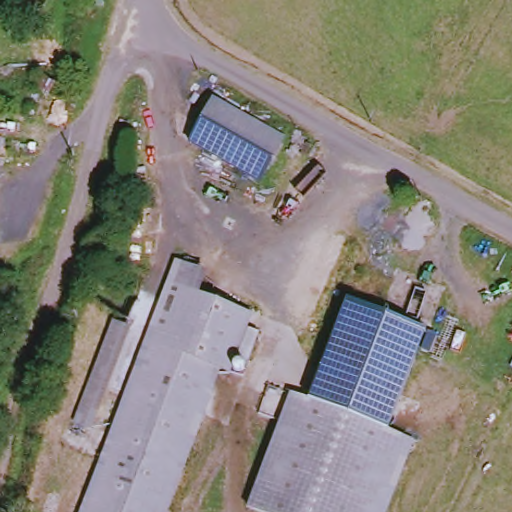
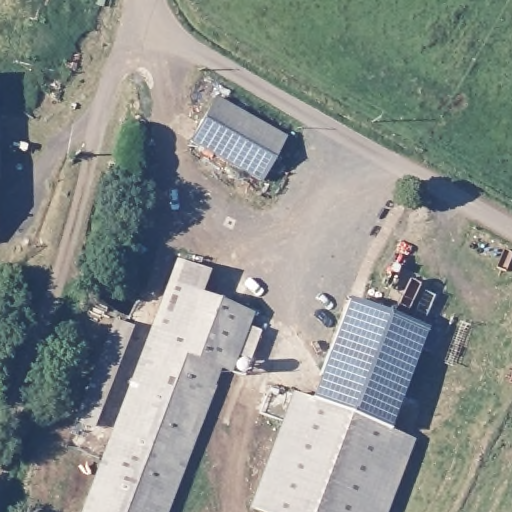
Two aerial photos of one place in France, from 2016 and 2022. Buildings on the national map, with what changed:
unchanged [(59,111),(39,110),(41,73),(61,74),(59,111)]
unchanged [(261,180),(191,142),(215,98),(285,137),(261,180)]
unchanged [(13,133),(12,154),(0,154),(0,133),(13,133)]
unchanged [(171,260),(196,270),(188,292),(246,314),(225,372),(216,368),(161,512),(76,512),(171,260)]
unchanged [(387,431),(411,439),(383,512),(260,512),(247,507),(291,393),(308,400),(346,299),(424,330),(387,431)]
unchanged [(90,426),(74,419),(114,320),(129,327),(90,426)]
unchanged [(243,361),(233,357),(243,328),(254,332),(243,361)]

